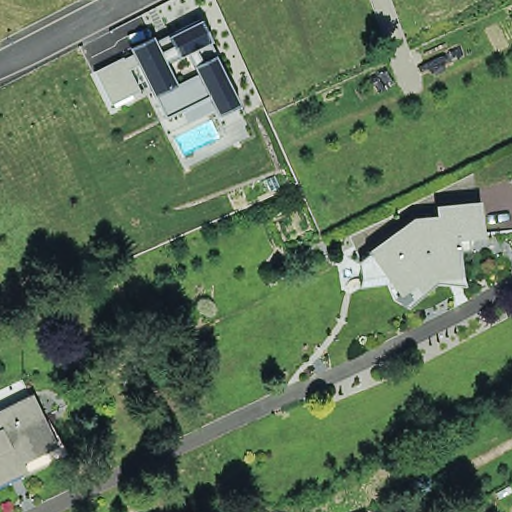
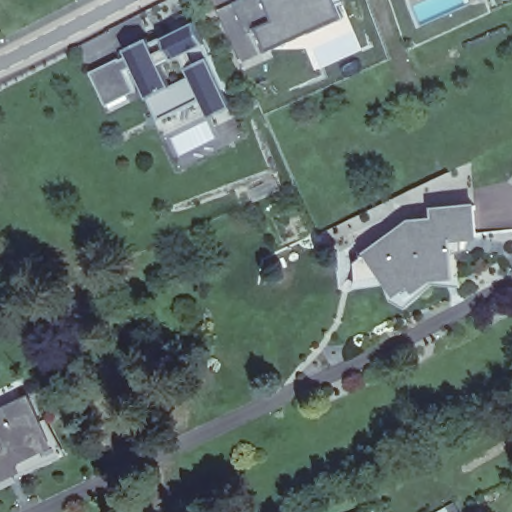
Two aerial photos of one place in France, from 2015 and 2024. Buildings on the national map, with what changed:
new [(261,29),(248,34),(233,1),(235,0),(342,0),(348,15),(271,51),(261,29)]
unchanged [(130,53),(128,49),(151,37),(153,42),(166,36),(198,21),(208,42),(214,56),(237,105),(216,115),(213,107),(183,121),(178,111),(161,119),(150,96),(137,67),(128,72),(137,90),(108,104),(91,72),(130,53)]
unchanged [(418,221),(443,219),(442,209),(479,205),(482,234),(459,236),(463,271),(438,274),(423,285),(418,277),(403,288),(392,273),(364,277),(362,262),(418,221)]
unchanged [(56,442),(19,459),(23,467),(0,479),(0,413),(34,397),(56,442)]

